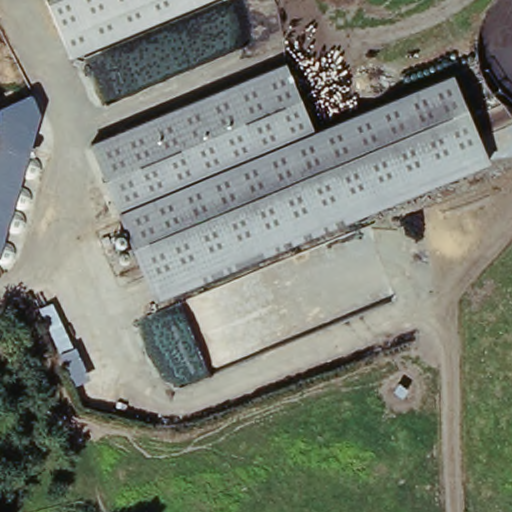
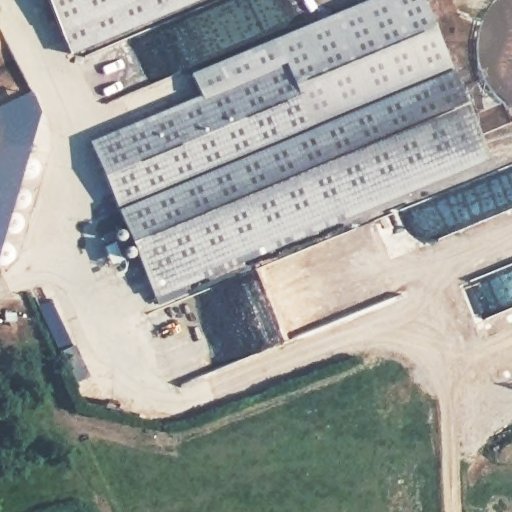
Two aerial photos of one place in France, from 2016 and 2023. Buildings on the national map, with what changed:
unchanged [(72,55),(47,0),(202,0),(72,55)]
new [(191,72),(370,0),(422,0),(452,72),(314,132),(287,65),(201,101),(191,72)]
unchanged [(287,65),(314,132),(452,72),(492,156),(160,301),(95,146),(287,65)]
new [(40,113),(0,249),(0,107),(31,93),(40,113)]

